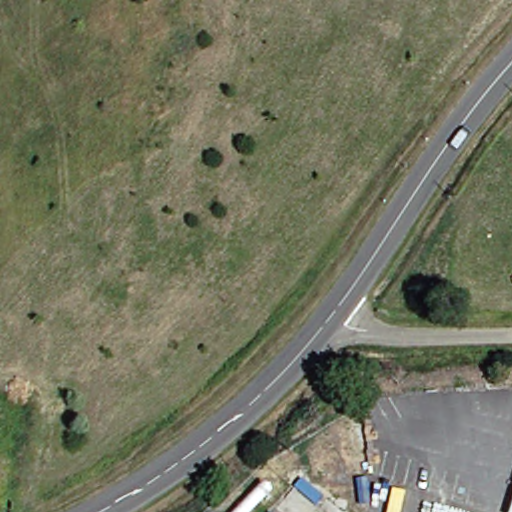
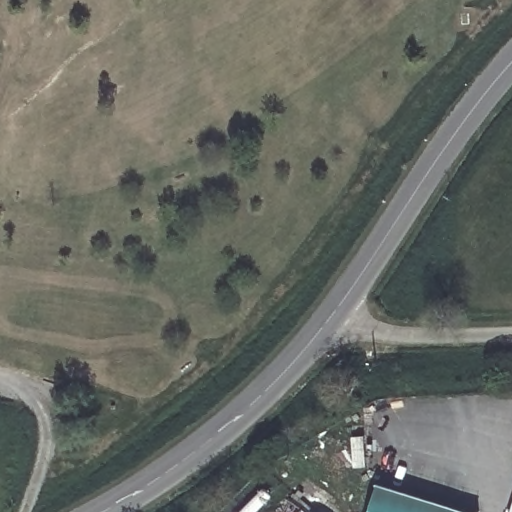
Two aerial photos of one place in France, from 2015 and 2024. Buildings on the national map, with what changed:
new [(377,482),(469,512),(368,512),(377,482)]
unchanged [(512,504),(512,512),(510,512),(512,504)]

